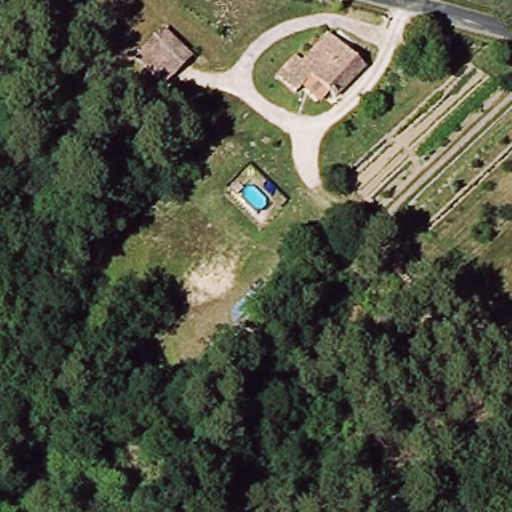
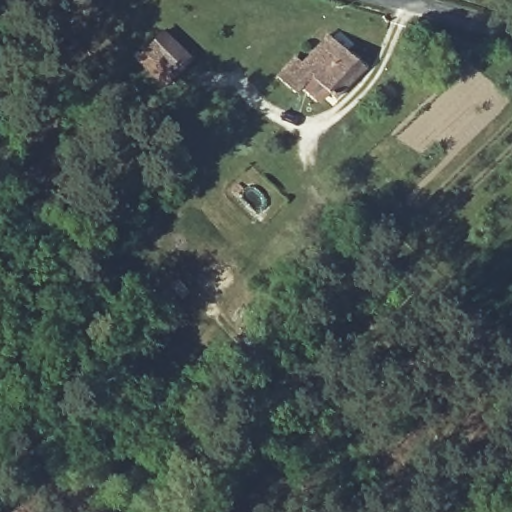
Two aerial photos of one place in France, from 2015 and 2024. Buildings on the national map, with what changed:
unchanged [(160,29),(188,56),(170,75),(141,48),(160,29)]
unchanged [(276,79),(281,73),(293,59),(300,64),(325,36),(358,64),(363,68),(334,102),(307,79),(294,94),(284,85),(276,79)]

